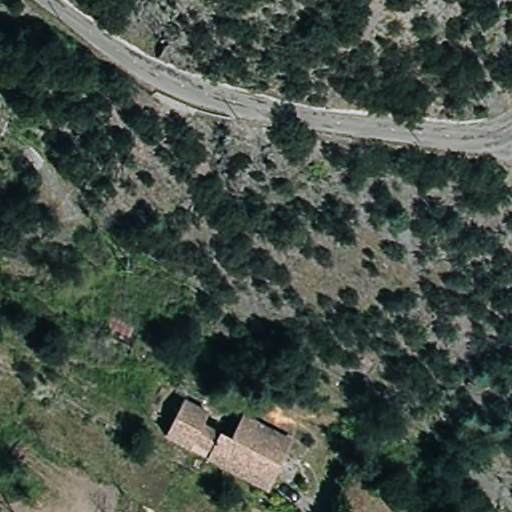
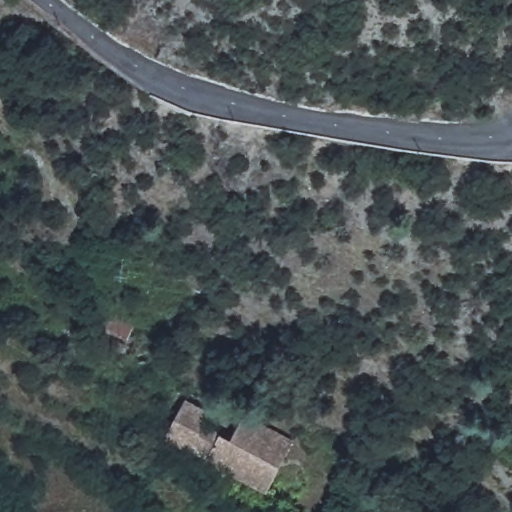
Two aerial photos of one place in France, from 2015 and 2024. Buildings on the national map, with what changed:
unchanged [(213,411),(208,420),(238,436),(250,411),(301,435),(277,485),(171,435),(188,399),(213,411)]

